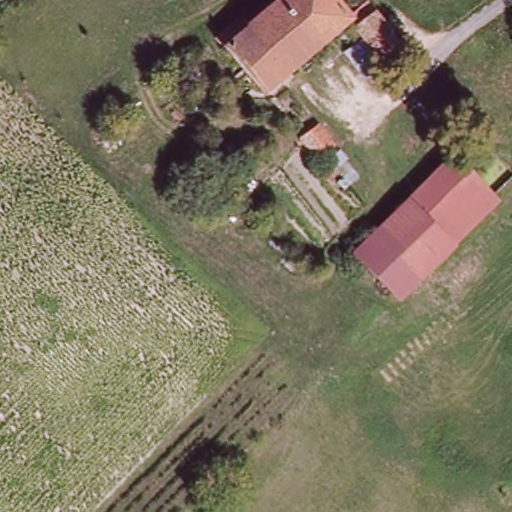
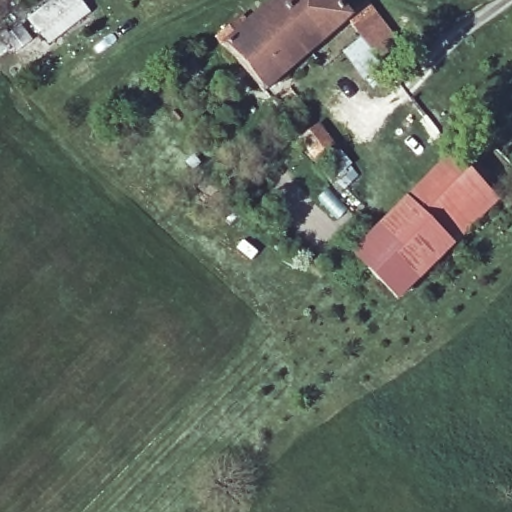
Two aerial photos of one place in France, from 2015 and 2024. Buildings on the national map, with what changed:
new [(48,0),(80,0),(86,7),(72,19),(74,22),(45,44),(25,17),(48,0)]
unchanged [(267,97),(220,41),(244,20),(252,27),(283,0),(337,0),(355,20),(346,27),(267,97)]
unchanged [(383,87),(378,81),(385,75),(346,27),(355,20),(368,7),(410,53),(395,65),(401,72),(383,87)]
unchanged [(334,147),(317,165),(297,142),(314,126),(334,147)]
unchanged [(451,158),(497,204),(397,302),(354,256),(451,158)]

